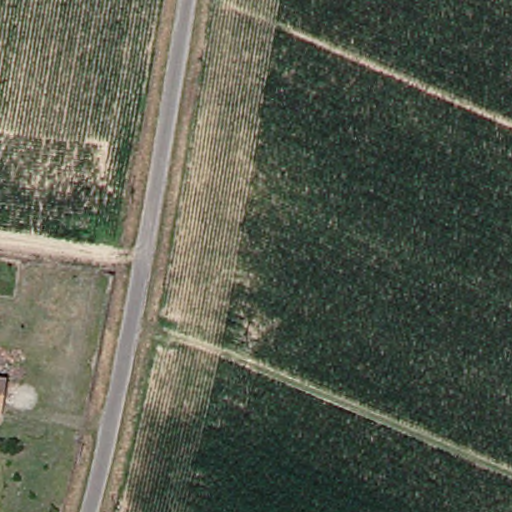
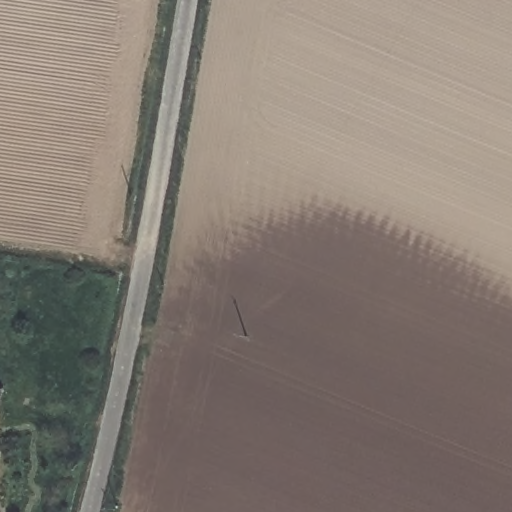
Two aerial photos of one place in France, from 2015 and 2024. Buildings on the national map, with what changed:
unchanged [(0,419),(0,384),(5,385),(0,419)]

